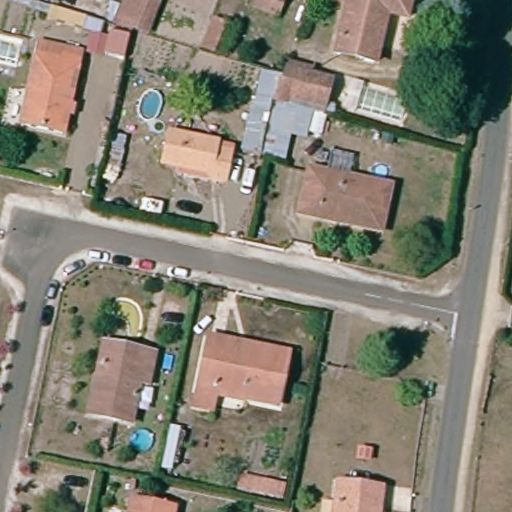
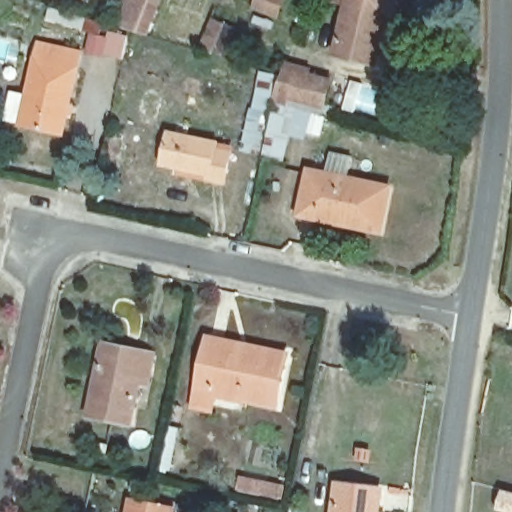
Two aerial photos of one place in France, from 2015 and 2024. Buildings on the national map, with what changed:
unchanged [(101,17),(105,0),(116,0),(120,1),(120,0),(159,0),(145,35),(101,17)]
unchanged [(256,9),(259,0),(280,0),(275,15),(256,9)]
unchanged [(385,19),(374,66),(335,56),(349,2),(338,0),(411,0),(406,24),(385,19)]
unchanged [(237,24),(224,58),(196,50),(214,14),(237,24)]
unchanged [(125,57),(106,54),(111,29),(130,32),(125,57)]
unchanged [(62,139),(17,130),(33,49),(78,56),(62,139)]
unchanged [(313,116),(275,104),(280,86),(283,77),(321,87),(318,96),(313,116)]
unchanged [(222,179),(207,176),(160,167),(167,132),(214,142),(213,147),(228,150),(222,179)]
unchanged [(377,235),(294,217),(304,171),(386,189),(377,235)]
unchanged [(192,382),(203,333),(238,340),(236,348),(278,357),(269,399),(212,387),(208,406),(188,401),(192,382)]
unchanged [(96,358),(98,347),(132,354),(149,357),(144,390),(132,388),(127,426),(84,419),(88,401),(91,382),(96,358)]
unchanged [(371,468),(361,467),(363,456),(373,458),(371,468)]
unchanged [(274,493),(235,487),(238,471),(277,477),(274,493)]
unchanged [(335,480),(383,487),(380,512),(330,512),(335,480)]
unchanged [(172,512),(131,512),(134,502),(172,511),(172,512)]

